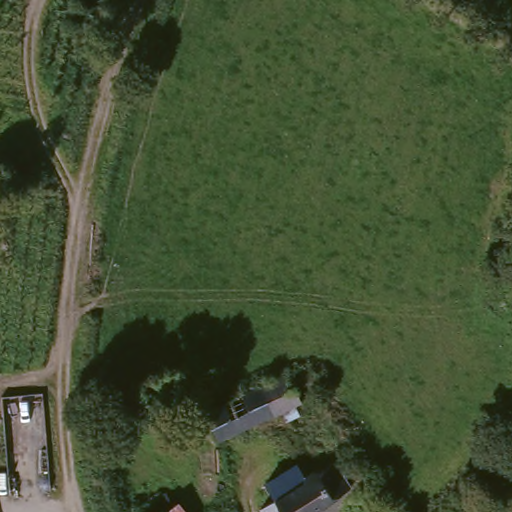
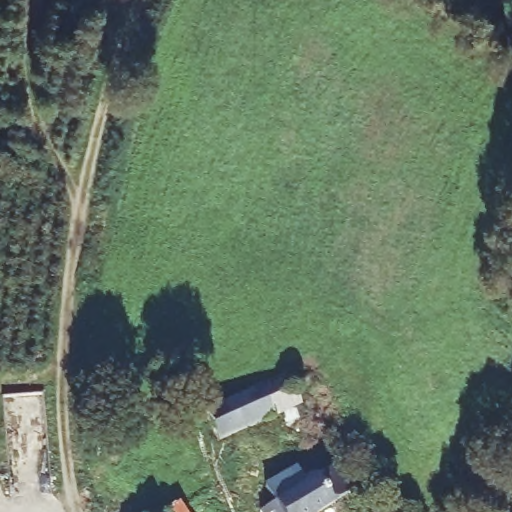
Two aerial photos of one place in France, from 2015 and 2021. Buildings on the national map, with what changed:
unchanged [(228,398),(255,386),(285,371),(292,386),(296,398),(268,412),(240,425),(217,436),(203,410),(228,398)]
unchanged [(278,496),(305,480),(334,462),(350,489),(316,512),(261,512),(259,508),(278,496)]
unchanged [(166,499),(178,512),(152,512),(166,499)]

